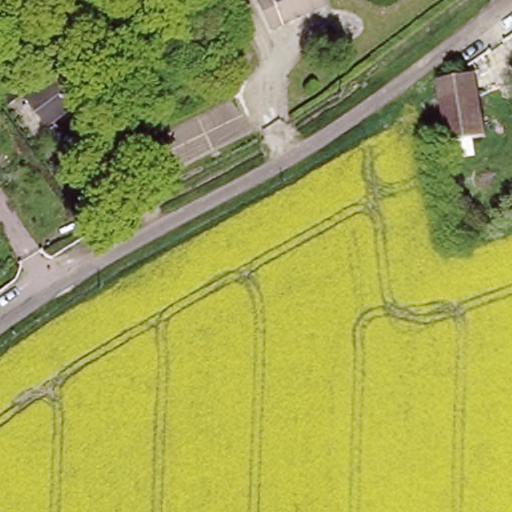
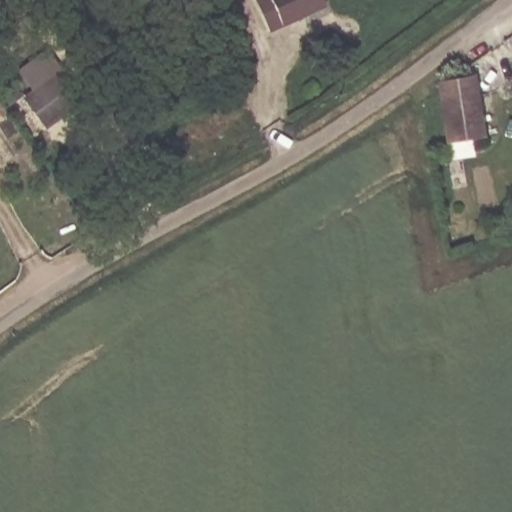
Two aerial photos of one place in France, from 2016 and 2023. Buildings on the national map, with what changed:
unchanged [(11,0),(32,0),(37,7),(23,17),(11,0)]
unchanged [(312,10),(272,31),(255,0),(329,0),(330,1),(312,10)]
unchanged [(46,119),(41,111),(50,105),(45,99),(36,105),(25,90),(58,64),(74,86),(80,94),(46,119)]
unchanged [(460,76),(477,74),(489,137),(448,144),(442,92),(440,80),(460,76)]

